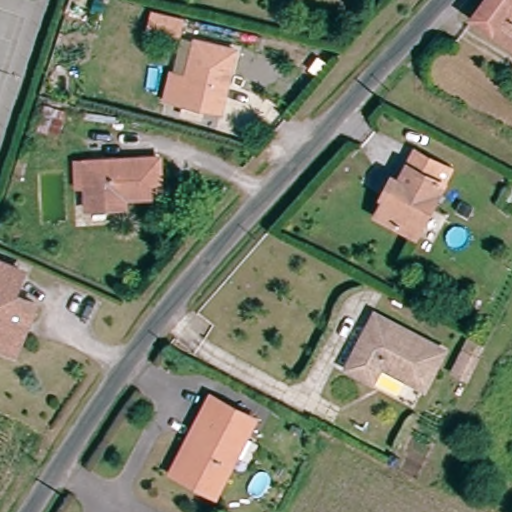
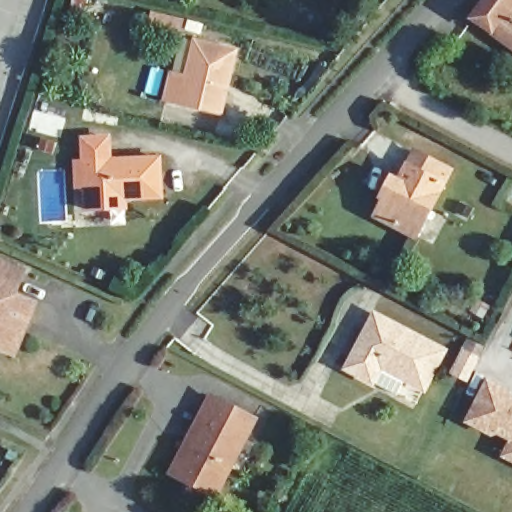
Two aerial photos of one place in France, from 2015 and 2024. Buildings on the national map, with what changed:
unchanged [(485,0),(512,0),(512,49),(471,22),(485,0)]
unchanged [(224,114),(169,103),(174,71),(188,76),(195,41),(236,49),(224,114)]
unchanged [(166,198),(126,201),(127,214),(94,217),(87,166),(161,159),(166,198)]
unchanged [(436,176),(409,236),(372,218),(379,203),(371,199),(380,181),(388,184),(401,159),(436,176)]
unchanged [(20,264),(14,288),(35,297),(17,351),(0,345),(0,257),(20,264)]
unchanged [(434,359),(413,392),(372,366),(362,379),(340,364),(370,318),(434,359)]
new [(512,394),(511,396),(512,397),(512,463),(501,457),(509,441),(498,435),(491,437),(465,423),(487,377),(512,389),(512,394)]
unchanged [(256,423),(219,495),(187,479),(176,474),(206,415),(214,402),(256,423)]

